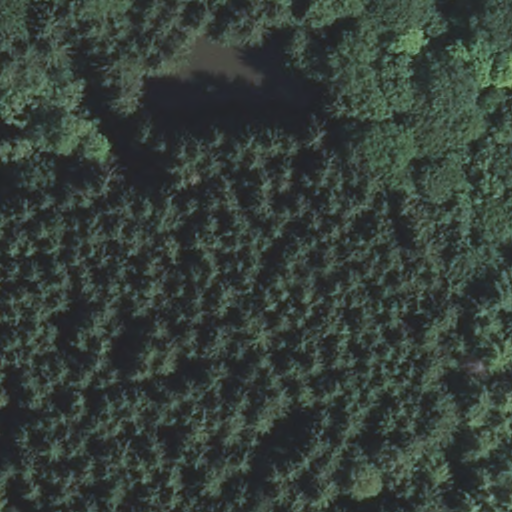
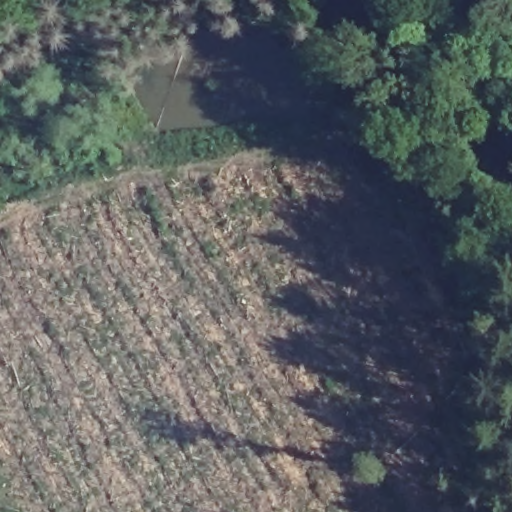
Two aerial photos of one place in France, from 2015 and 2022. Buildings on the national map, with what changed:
unchanged [(241,1),(241,11),(197,11),(197,0),(241,0),(241,1)]

